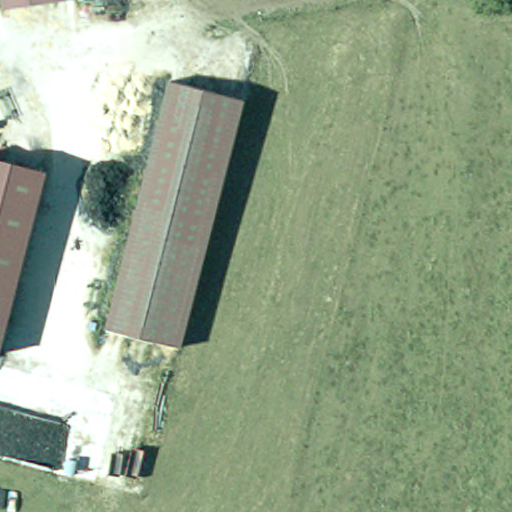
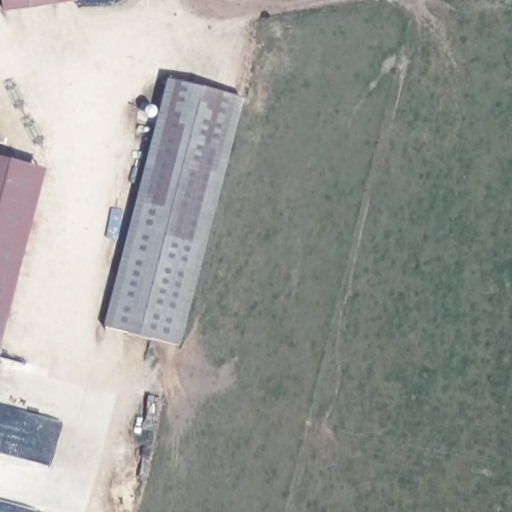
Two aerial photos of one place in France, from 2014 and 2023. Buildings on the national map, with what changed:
unchanged [(56,4),(0,11),(0,0),(55,0),(56,4)]
unchanged [(76,1),(56,4),(55,0),(76,0),(76,1)]
unchanged [(246,95),(183,344),(110,325),(173,77),(246,95)]
unchanged [(53,168),(7,351),(0,349),(0,155),(53,168)]

